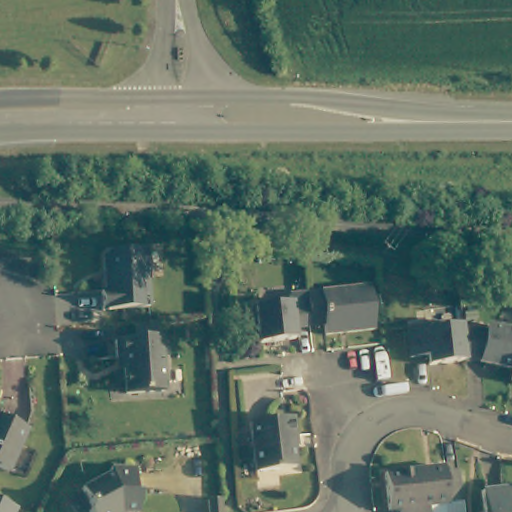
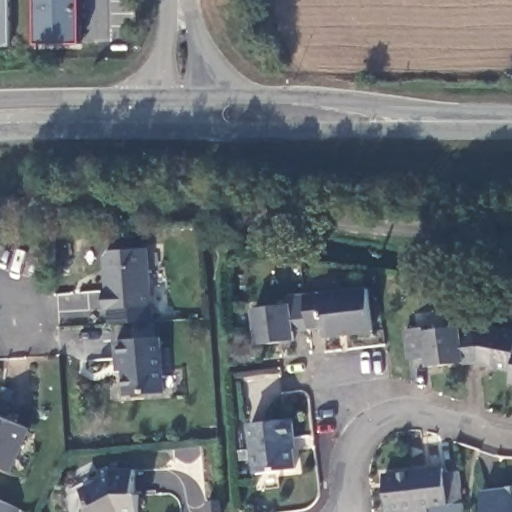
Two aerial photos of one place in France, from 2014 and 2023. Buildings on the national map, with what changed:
new [(0,46),(0,0),(9,0),(9,46),(0,46)]
new [(35,44),(35,0),(80,0),(80,44),(35,44)]
unchanged [(152,306),(104,303),(102,285),(107,284),(105,249),(110,244),(147,242),(152,306)]
unchanged [(301,297),(365,290),(370,332),(321,338),(319,328),(305,330),(301,297)]
unchanged [(305,330),(307,343),(256,346),(252,310),(286,306),(285,300),(301,297),(305,330)]
unchanged [(427,363),(425,353),(408,356),(404,327),(421,324),(422,328),(456,323),(456,330),(460,358),(427,363)]
unchanged [(482,330),(484,326),(512,332),(512,359),(510,367),(478,361),(477,356),(460,358),(456,330),(470,327),(482,330)]
unchanged [(159,337),(161,391),(127,393),(126,370),(119,371),(118,358),(118,341),(159,337)]
unchanged [(510,367),(512,359),(512,379),(508,378),(510,367)]
unchanged [(28,426),(8,468),(0,464),(0,414),(28,426)]
unchanged [(256,471),(252,442),(250,422),(290,417),(293,437),(296,466),(256,471)]
unchanged [(444,471),(459,468),(463,501),(427,505),(428,512),(398,512),(398,508),(387,510),(383,472),(443,466),(444,471)]
unchanged [(129,468),(129,492),(133,492),(133,512),(83,512),(86,507),(76,489),(106,473),(106,468),(129,468)]
unchanged [(512,494),(512,512),(485,512),(482,490),(507,486),(509,494),(512,494)]
unchanged [(222,512),(208,512),(207,497),(220,497),(222,512)]
unchanged [(16,507),(14,512),(0,512),(0,500),(16,507)]
new [(463,501),(465,512),(428,512),(427,505),(463,501)]

